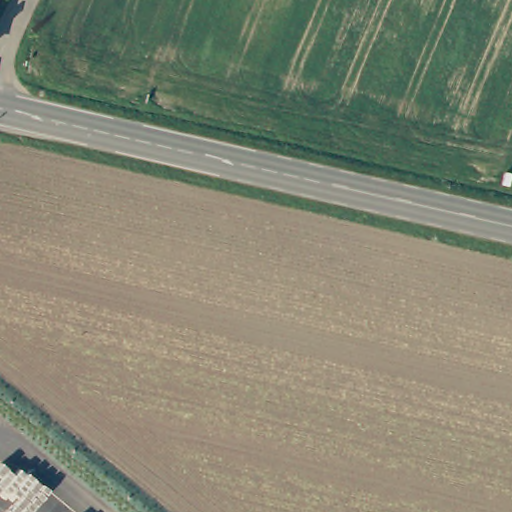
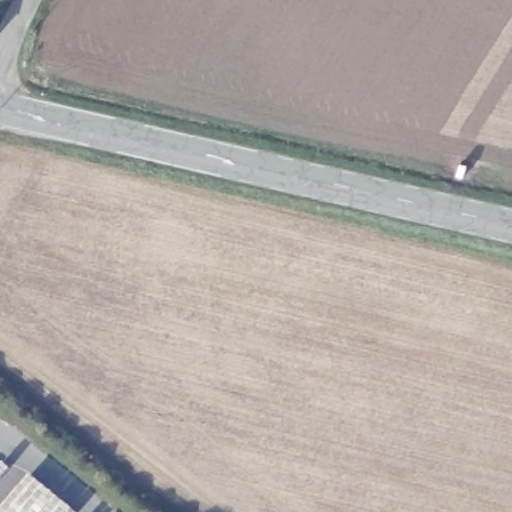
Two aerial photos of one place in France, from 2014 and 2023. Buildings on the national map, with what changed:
unchanged [(5,0),(8,0),(8,1),(5,0)]

